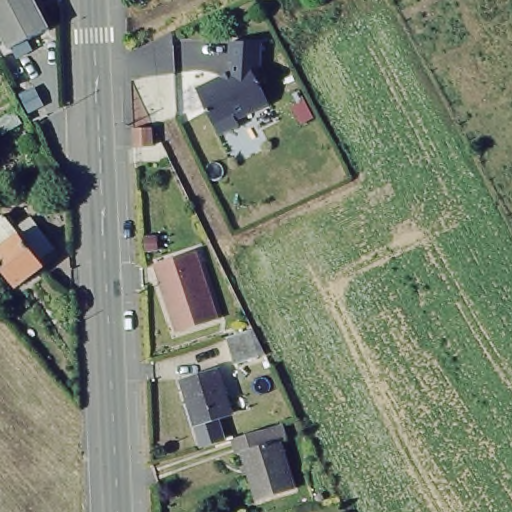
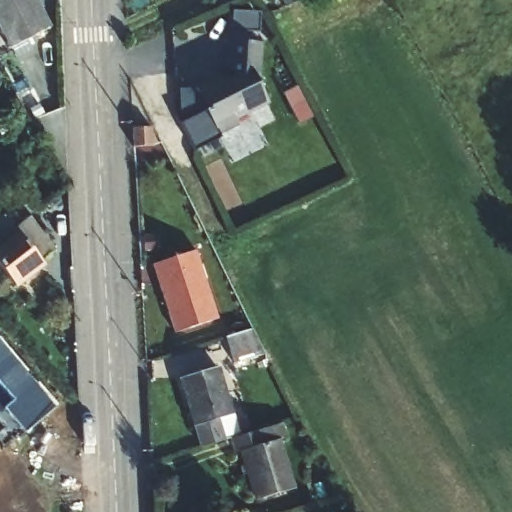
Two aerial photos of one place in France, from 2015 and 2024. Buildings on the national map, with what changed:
unchanged [(50,28),(30,39),(34,49),(20,57),(14,47),(12,48),(0,26),(0,0),(36,0),(50,28)]
unchanged [(232,65),(233,44),(250,45),(263,46),(261,67),(260,84),(271,105),(253,114),(252,112),(237,120),(240,127),(221,137),(194,150),(180,124),(206,109),(198,89),(231,71),(232,65)]
unchanged [(0,67),(0,49),(5,47),(8,52),(10,51),(23,78),(10,85),(0,67)]
unchanged [(54,73),(65,93),(25,112),(15,93),(54,73)]
unchanged [(298,127),(289,108),(302,101),(312,120),(298,127)]
unchanged [(147,127),(149,146),(132,146),(131,128),(147,127)]
unchanged [(16,287),(0,267),(0,248),(0,247),(0,218),(3,216),(15,231),(30,219),(56,250),(40,263),(42,265),(16,287)]
unchanged [(195,252),(215,318),(173,331),(152,264),(195,252)]
unchanged [(253,331),(261,356),(238,362),(230,338),(253,331)]
new [(50,411),(23,433),(17,426),(10,432),(0,421),(0,352),(50,411)]
unchanged [(215,371),(230,414),(218,419),(223,439),(199,445),(181,380),(215,371)]
unchanged [(283,425),(286,438),(278,441),(292,492),(256,502),(242,451),(236,453),(232,440),(283,425)]

